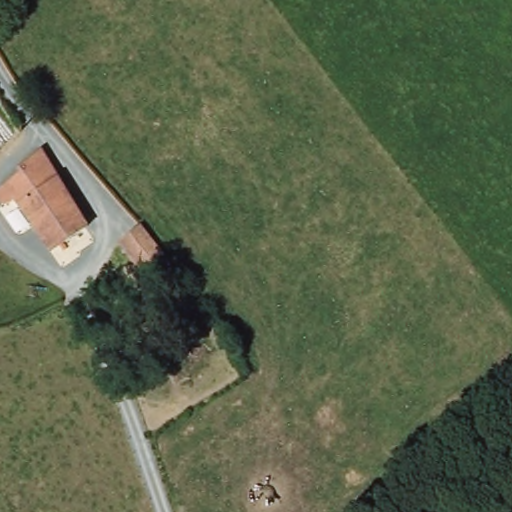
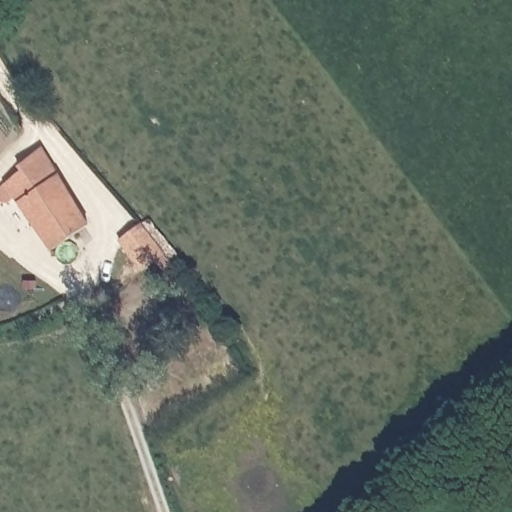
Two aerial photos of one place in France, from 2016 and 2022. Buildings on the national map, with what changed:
unchanged [(38,156),(53,178),(58,185),(68,201),(78,195),(95,222),(45,255),(9,204),(3,207),(0,208),(0,185),(6,182),(5,180),(4,178),(35,158),(38,156)]
unchanged [(165,259),(142,274),(122,243),(144,229),(165,259)]

